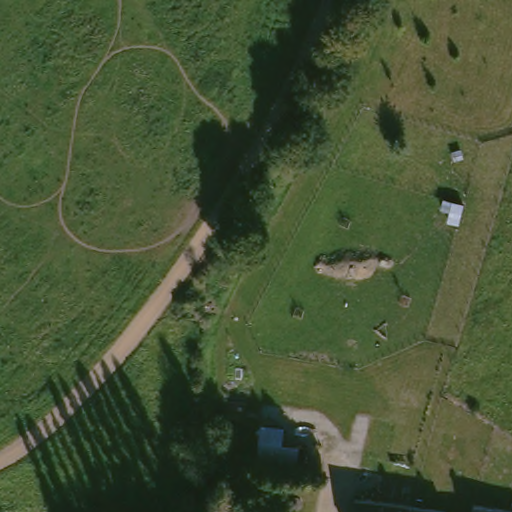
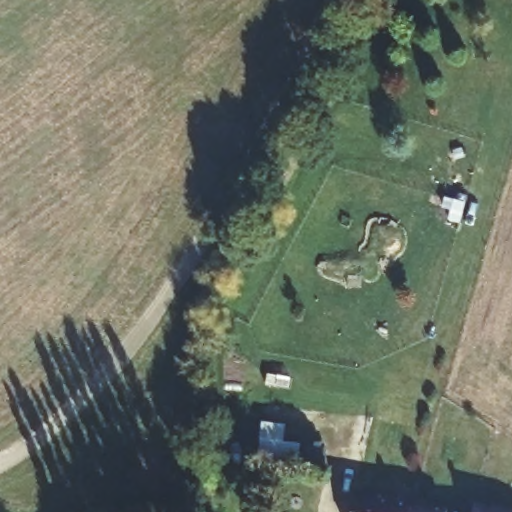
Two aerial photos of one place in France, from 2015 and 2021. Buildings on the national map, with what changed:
unchanged [(405,512),(350,512),(351,501),(381,505),(405,507),(405,512)]
unchanged [(444,511),(444,512),(405,512),(405,507),(444,511)]
unchanged [(494,512),(471,512),(471,509),(494,512)]

